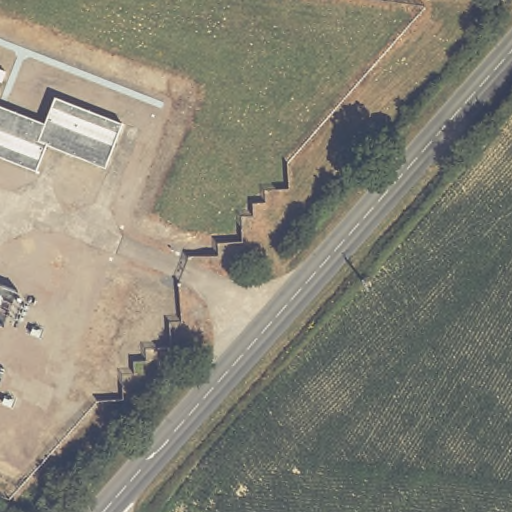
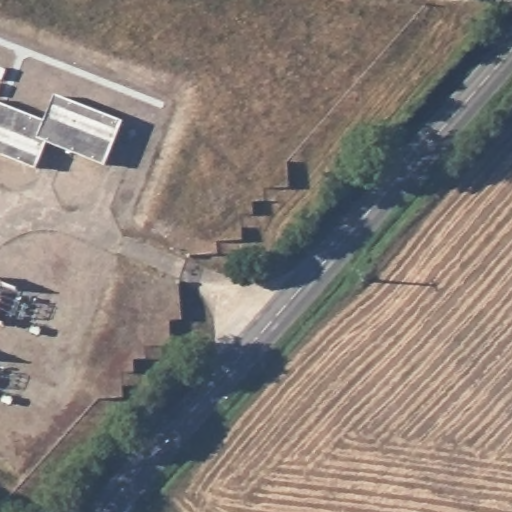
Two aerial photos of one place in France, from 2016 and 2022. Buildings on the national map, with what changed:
unchanged [(43,125),(54,100),(121,126),(104,168),(46,145),(35,171),(0,157),(0,108),(43,125)]

